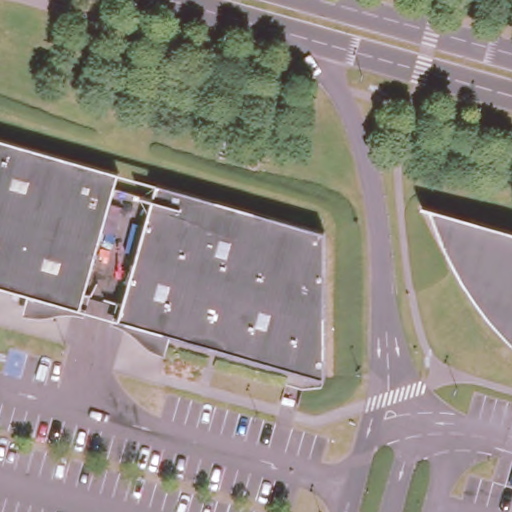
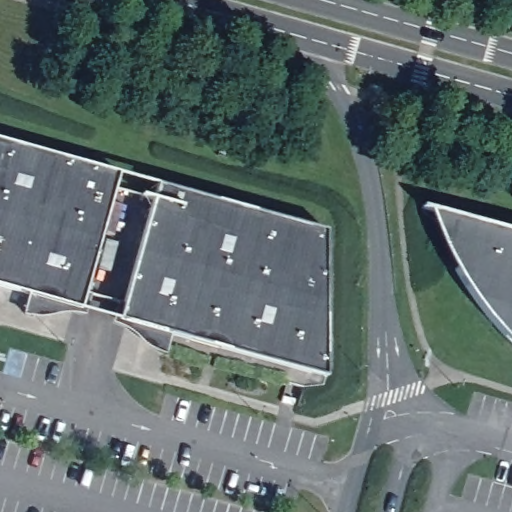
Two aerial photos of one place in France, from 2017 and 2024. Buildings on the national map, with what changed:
unchanged [(81,302),(0,279),(0,133),(120,166),(81,302)]
unchanged [(325,374),(120,318),(159,182),(329,229),(325,374)]
unchanged [(469,221),(474,223),(461,270),(454,269),(449,260),(443,248),(438,234),(432,223),(428,210),(419,207),(421,203),(438,208),(469,217),(469,221)]
unchanged [(504,340),(495,328),(486,317),(476,304),(468,293),(461,282),(454,269),(461,270),(474,223),(469,221),(469,217),(512,229),(512,347),(504,340)]

